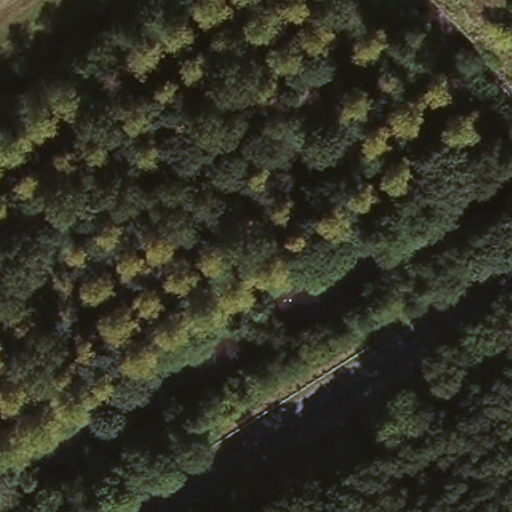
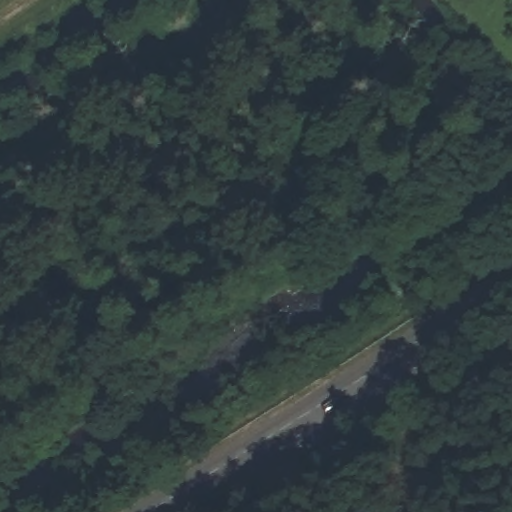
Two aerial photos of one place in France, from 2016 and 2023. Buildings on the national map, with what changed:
[]

